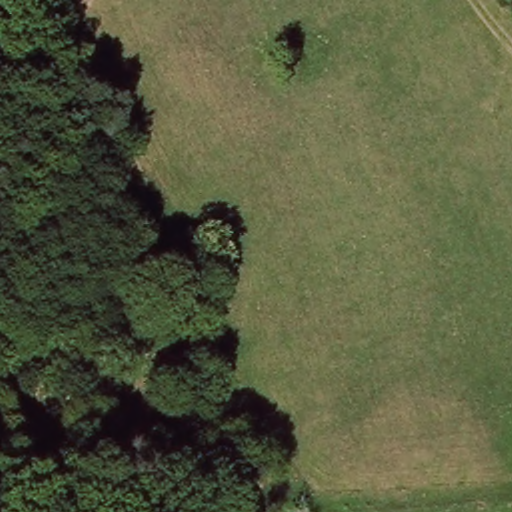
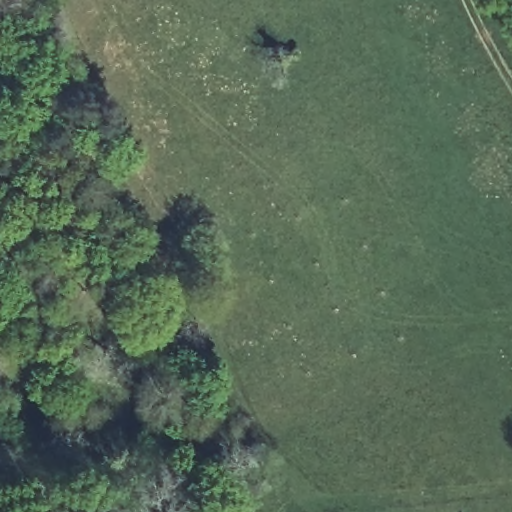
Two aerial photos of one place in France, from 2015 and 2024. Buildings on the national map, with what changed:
[]

